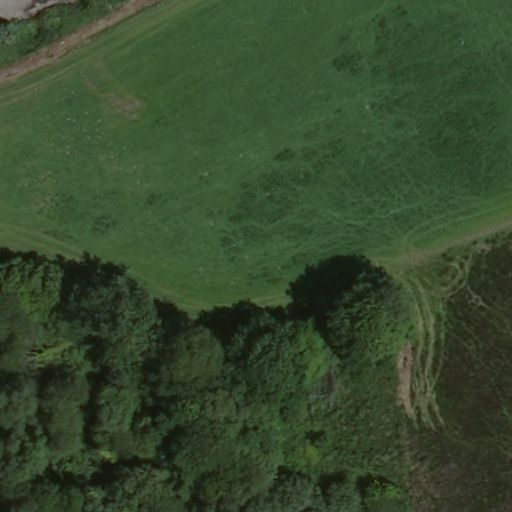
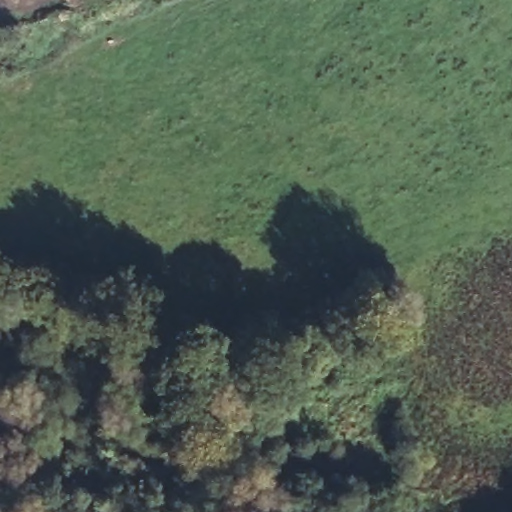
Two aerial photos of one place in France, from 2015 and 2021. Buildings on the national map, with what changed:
[]

